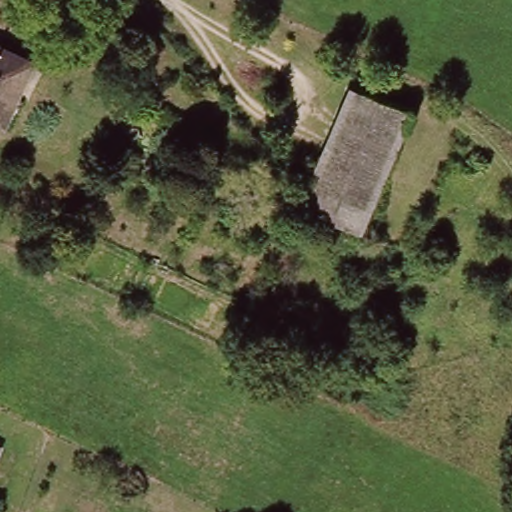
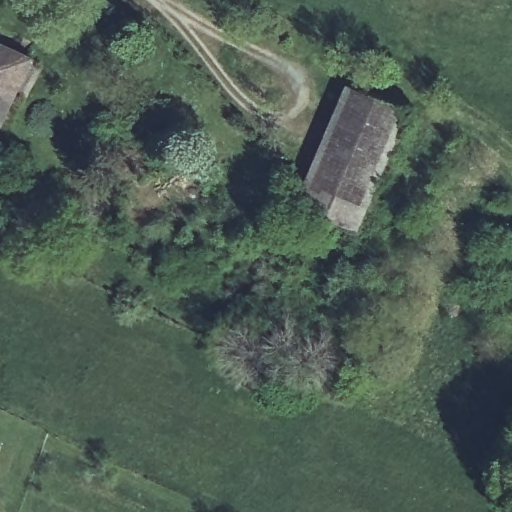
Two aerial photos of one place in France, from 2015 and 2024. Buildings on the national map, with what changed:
unchanged [(0,118),(0,48),(27,60),(2,120),(0,118)]
unchanged [(392,137),(337,112),(347,87),(402,111),(392,137)]
unchanged [(355,226),(297,201),(337,112),(392,137),(355,226)]

